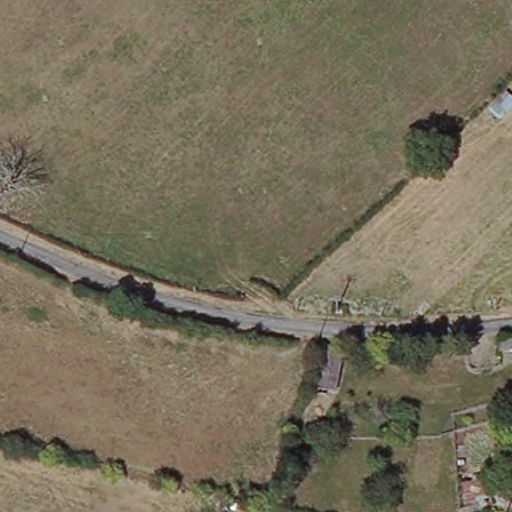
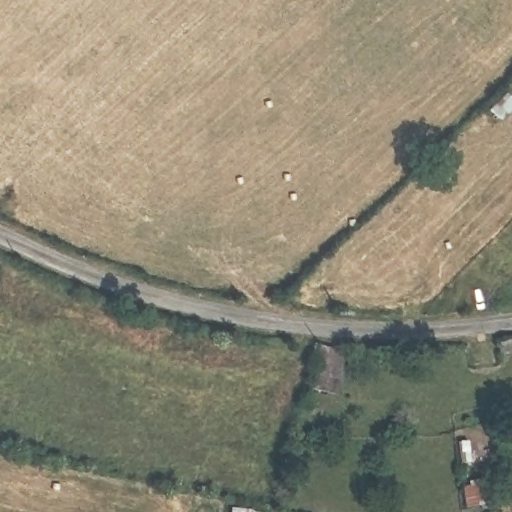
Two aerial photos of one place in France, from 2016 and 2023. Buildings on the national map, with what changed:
unchanged [(329,351),(322,389),(308,386),(315,348),(329,351)]
unchanged [(277,512),(227,512),(227,500),(277,512)]

